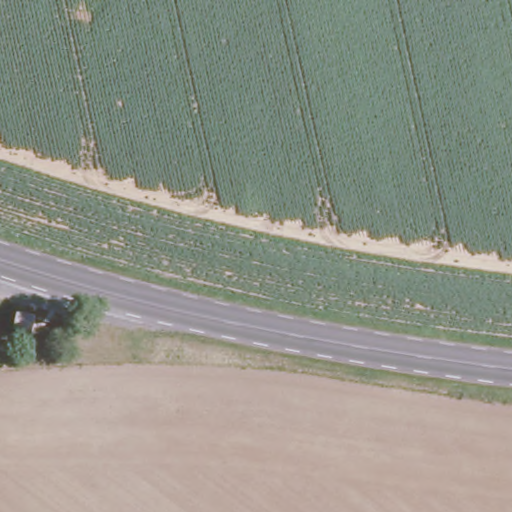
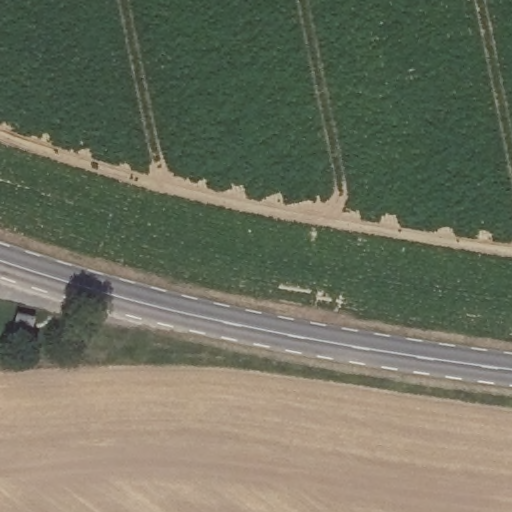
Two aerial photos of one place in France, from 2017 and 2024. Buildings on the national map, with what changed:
unchanged [(43,329),(17,329),(16,313),(42,313),(43,329)]

